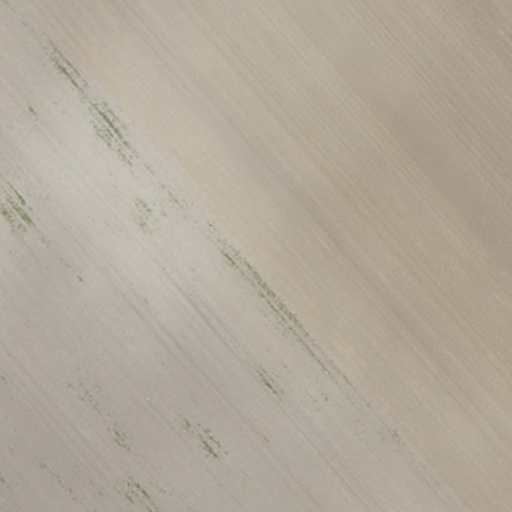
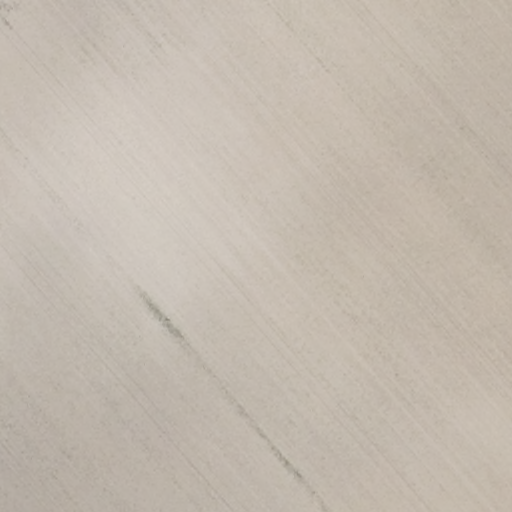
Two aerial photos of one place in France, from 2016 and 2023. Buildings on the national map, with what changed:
[]

